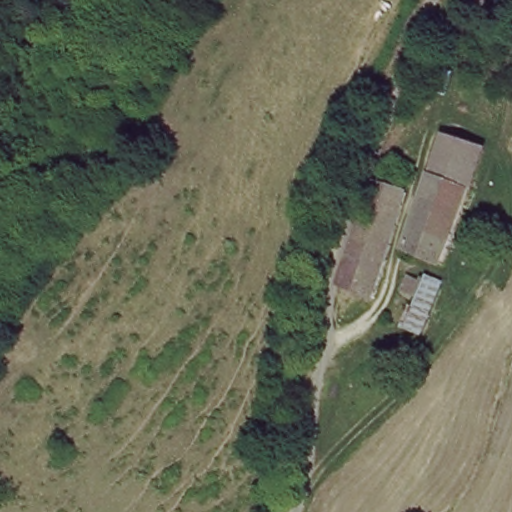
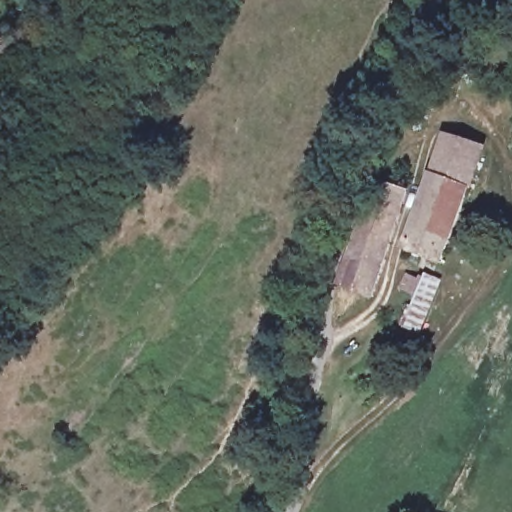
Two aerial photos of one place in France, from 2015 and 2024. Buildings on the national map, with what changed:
unchanged [(475,152),(465,186),(430,176),(439,142),(475,152)]
unchanged [(445,254),(445,261),(409,251),(430,176),(465,186),(445,254)]
unchanged [(392,301),(341,283),(376,188),(411,198),(392,263),(407,271),(392,301)]
unchanged [(423,277),(440,286),(439,297),(427,339),(405,321),(423,277)]

